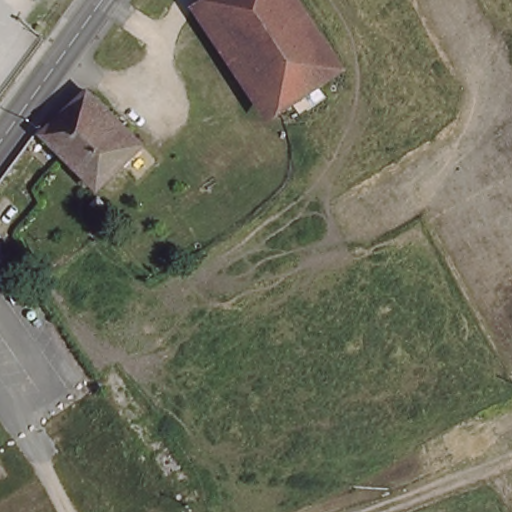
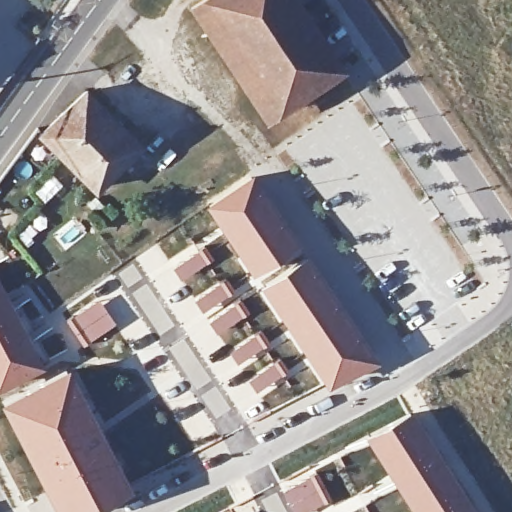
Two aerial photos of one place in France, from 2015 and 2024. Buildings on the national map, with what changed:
unchanged [(279,113),(267,121),(194,13),(212,0),(264,0),(223,26),(279,113)]
unchanged [(279,113),(223,26),(264,0),(295,0),(343,71),(279,113)]
unchanged [(141,148),(96,191),(44,135),(88,93),(141,148)]
new [(252,173),(302,243),(253,274),(204,205),(252,173)]
new [(203,246),(213,259),(183,284),(171,268),(203,246)]
new [(308,252),(380,359),(324,386),(258,285),(308,252)]
new [(223,278),(232,292),(202,312),(193,299),(223,278)]
new [(22,320),(47,363),(0,386),(0,280),(22,320)]
new [(147,283),(178,327),(160,338),(130,294),(147,283)]
new [(99,298),(115,322),(82,345),(65,320),(99,298)]
new [(239,300),(248,313),(219,336),(209,321),(239,300)]
new [(258,331),(267,344),(238,365),(230,352),(258,331)]
new [(184,338),(213,380),(197,391),(167,347),(184,338)]
new [(278,358),(287,372),(257,393),(248,380),(278,358)]
new [(68,365),(131,485),(80,512),(55,512),(0,404),(0,402),(68,365)]
new [(216,384),(232,408),(216,419),(199,395),(216,384)]
new [(203,409),(216,430),(193,443),(180,422),(203,409)]
new [(390,420),(414,411),(479,512),(411,512),(363,436),(390,420)]
new [(314,471),(330,500),(310,512),(294,512),(282,490),(314,471)]

